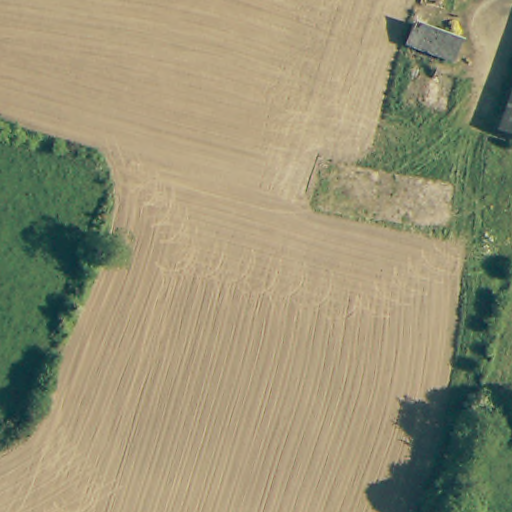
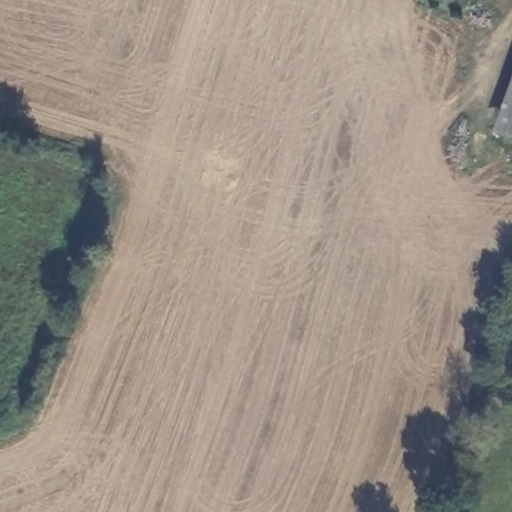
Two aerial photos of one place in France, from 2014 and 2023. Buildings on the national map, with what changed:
demolished [(411,26),(425,31),(457,44),(449,64),(418,52),(403,46),(411,26)]
unchanged [(512,87),(512,140),(495,134),(512,87)]

